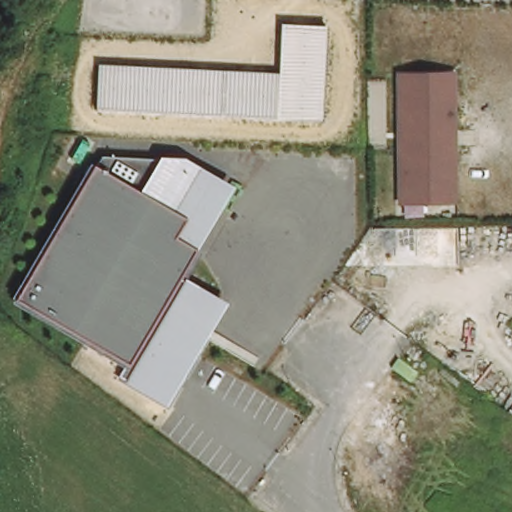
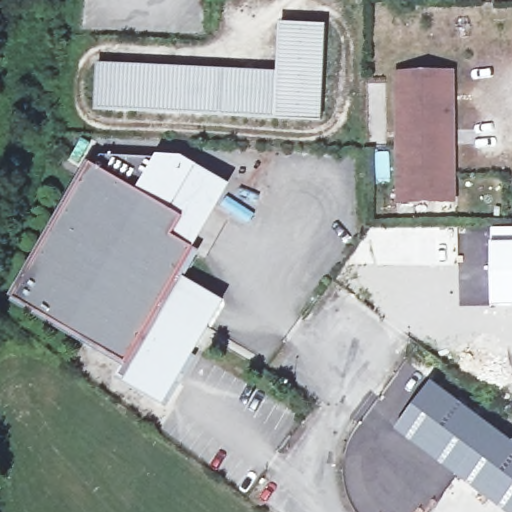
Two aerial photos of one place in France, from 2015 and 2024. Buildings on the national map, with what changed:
unchanged [(99,112),(100,66),(282,75),(284,25),(328,27),(321,121),(99,112)]
unchanged [(446,72),(448,199),(397,200),(396,73),(446,72)]
unchanged [(195,251),(204,255),(190,283),(226,303),(165,406),(121,383),(130,367),(15,296),(99,157),(157,160),(159,156),(185,155),(233,186),(195,251)]
new [(512,242),(512,305),(492,306),(492,243),(512,242)]
new [(512,437),(512,512),(398,426),(435,379),(512,437)]

